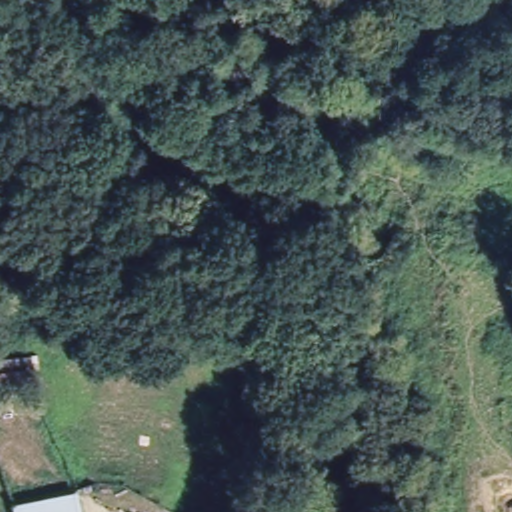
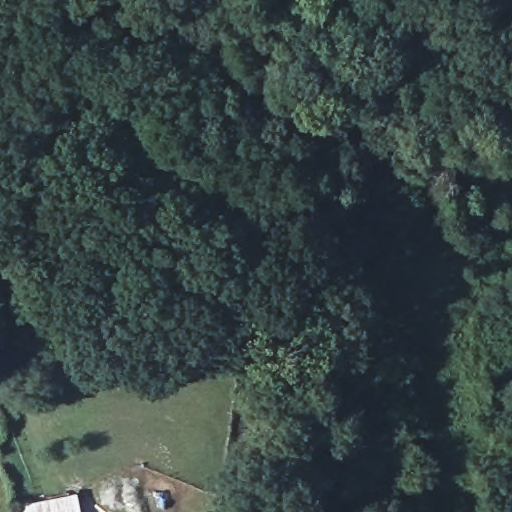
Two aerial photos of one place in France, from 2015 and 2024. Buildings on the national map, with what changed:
unchanged [(75,488),(79,512),(12,512),(10,502),(75,488)]

